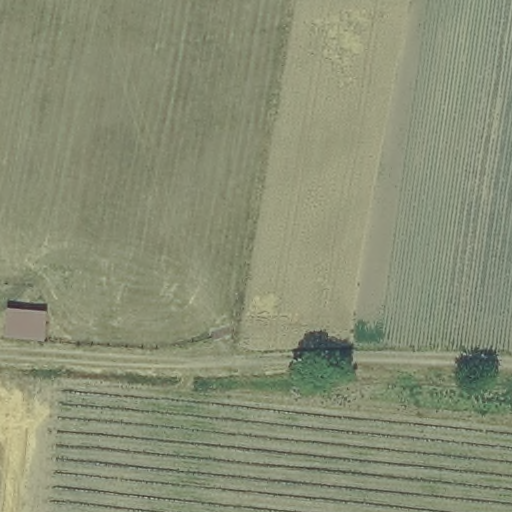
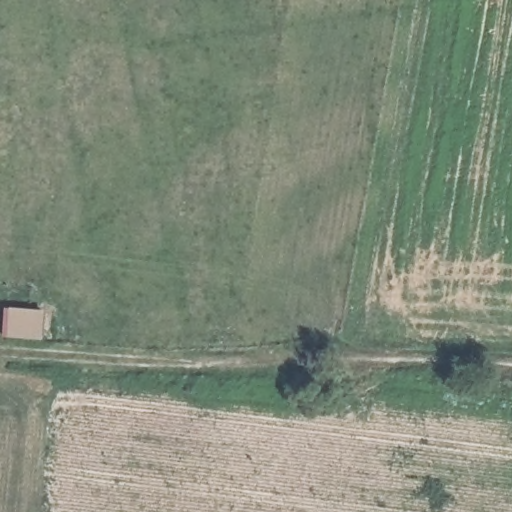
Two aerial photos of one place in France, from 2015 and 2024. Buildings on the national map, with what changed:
unchanged [(35,341),(8,336),(12,315),(35,319),(35,341)]

